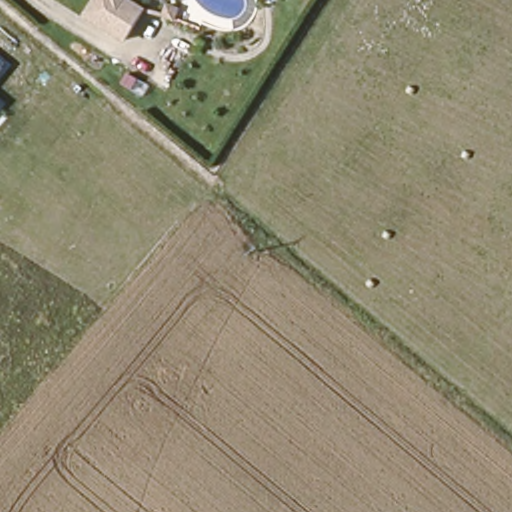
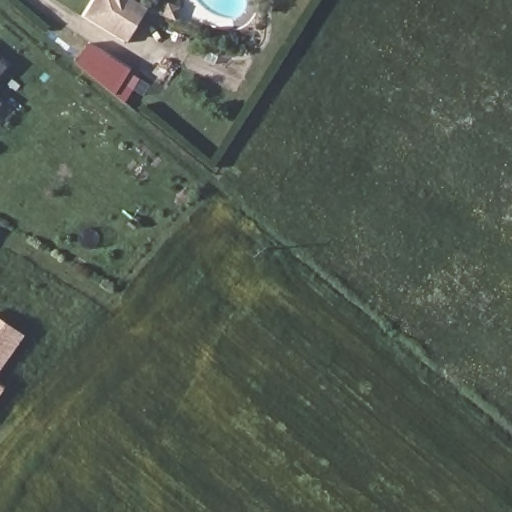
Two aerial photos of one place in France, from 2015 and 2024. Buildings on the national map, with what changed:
unchanged [(98,0),(137,0),(147,7),(128,37),(90,12),(98,0)]
unchanged [(178,9),(175,20),(164,16),(167,5),(178,9)]
new [(7,68),(0,76),(0,62),(7,68)]
new [(2,104),(0,107),(0,102),(2,104)]
new [(21,336),(0,366),(0,321),(21,336)]

